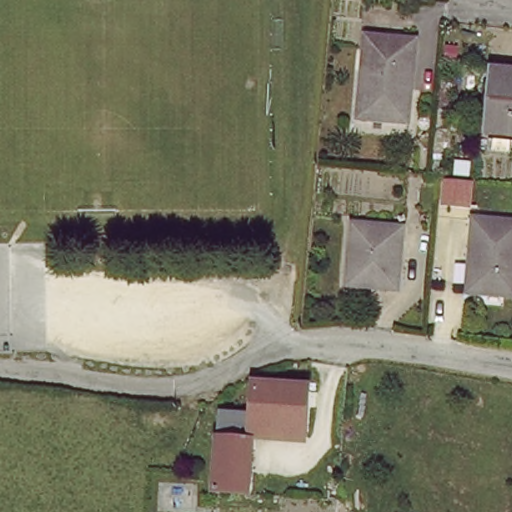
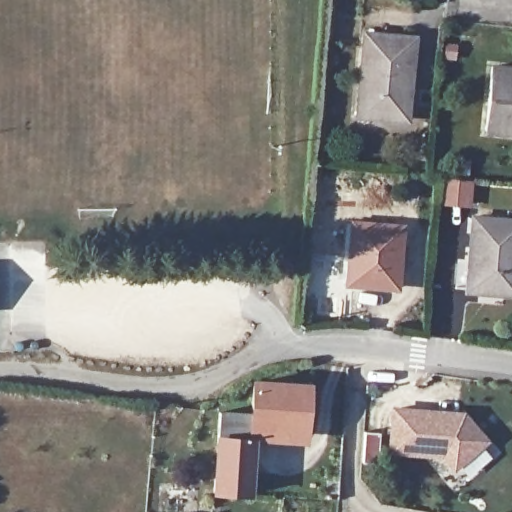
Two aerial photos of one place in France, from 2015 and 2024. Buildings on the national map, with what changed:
unchanged [(410,39),(406,123),(362,121),(366,36),(410,39)]
unchanged [(512,69),(512,135),(491,134),(494,69),(512,69)]
unchanged [(476,218),(512,220),(512,294),(471,291),(476,218)]
unchanged [(392,286),(346,284),(350,226),(396,229),(392,286)]
unchanged [(216,478),(220,437),(221,430),(223,412),(233,413),(254,413),(255,383),(305,386),(301,433),(253,431),(253,437),(250,492),(216,490),(216,478)]
new [(462,411),(488,441),(451,472),(440,458),(386,454),(389,406),(462,411)]
new [(365,434),(380,435),(378,465),(363,464),(365,434)]

